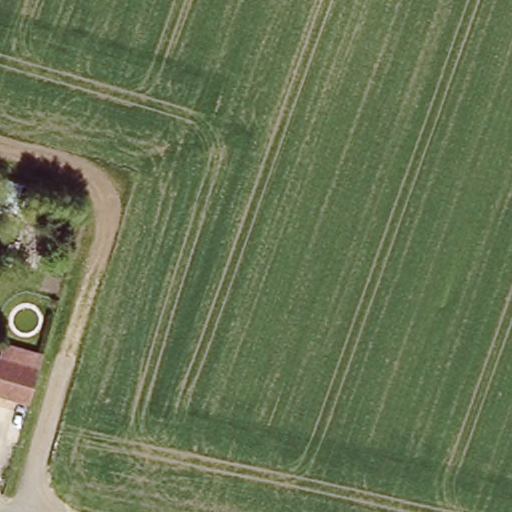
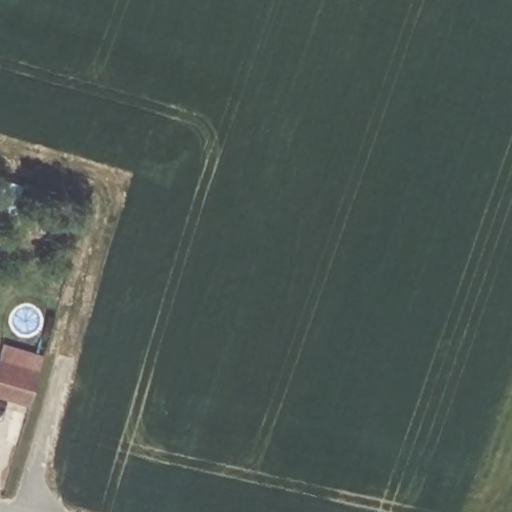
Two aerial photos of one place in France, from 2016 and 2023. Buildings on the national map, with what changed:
unchanged [(0,395),(0,348),(2,340),(42,352),(39,366),(27,403),(0,395)]

